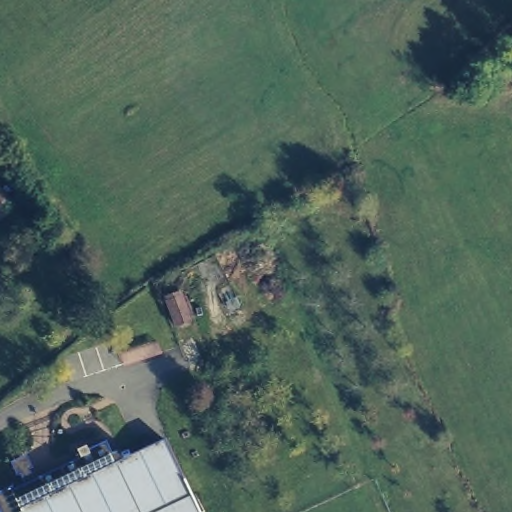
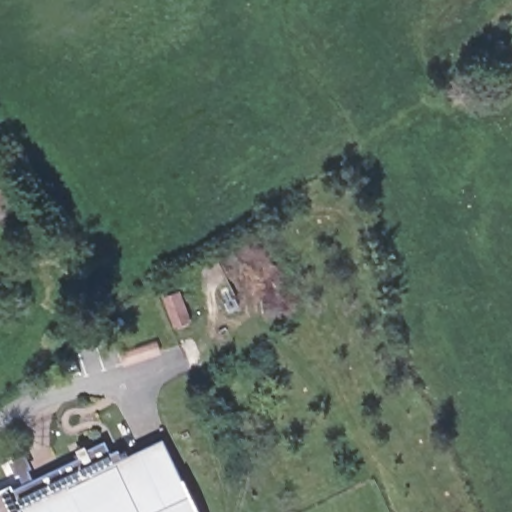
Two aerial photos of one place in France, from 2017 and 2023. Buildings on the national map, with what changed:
unchanged [(185,316),(171,322),(158,294),(172,288),(185,316)]
unchanged [(167,435),(203,512),(27,512),(22,500),(167,435)]

